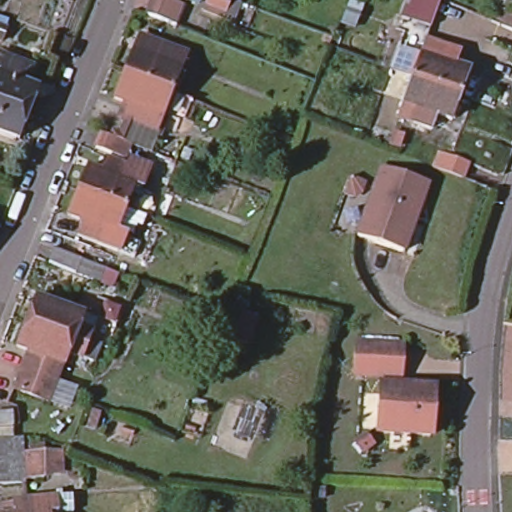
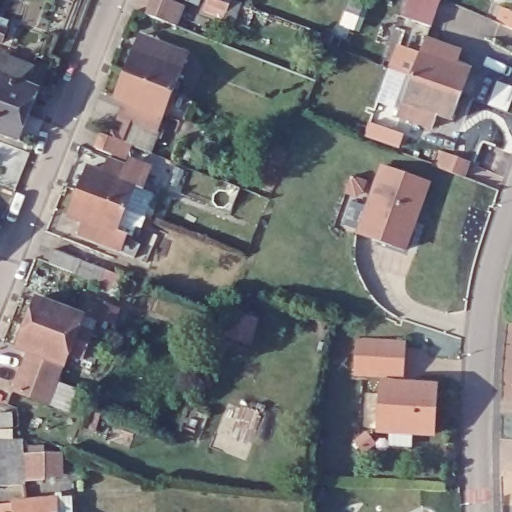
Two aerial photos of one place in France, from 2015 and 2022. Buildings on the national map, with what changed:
unchanged [(188,5),(179,26),(150,14),(156,0),(174,0),(184,4),(188,5)]
unchanged [(237,0),(232,11),(213,4),(215,0),(237,0)]
unchanged [(404,14),(409,0),(443,0),(434,25),(404,14)]
unchanged [(502,20),(508,4),(512,6),(512,24),(502,20)]
unchanged [(7,40),(0,38),(0,25),(11,28),(7,40)]
unchanged [(130,119),(135,104),(118,98),(128,73),(137,49),(142,35),(159,41),(193,53),(177,92),(195,100),(187,121),(168,114),(167,117),(162,132),(150,127),(130,119)]
unchanged [(415,79),(394,72),(401,52),(423,60),(425,56),(430,40),(444,45),(465,53),(460,67),(472,73),(463,97),(453,121),(439,116),(433,131),(414,123),(401,118),(407,104),(415,79)]
unchanged [(0,115),(0,66),(28,76),(20,95),(35,100),(25,124),(16,149),(0,143),(0,115)]
unchanged [(118,166),(91,155),(95,141),(124,152),(118,166)]
unchanged [(441,148),(470,159),(465,174),(435,163),(441,148)]
unchanged [(385,165),(430,182),(405,248),(360,231),(385,165)]
unchanged [(119,219),(70,199),(80,175),(96,180),(102,166),(120,173),(122,169),(142,176),(133,197),(128,195),(119,219)]
unchanged [(112,261),(90,253),(71,245),(76,229),(61,224),(70,199),(119,219),(110,243),(117,245),(112,261)]
unchanged [(79,272),(53,262),(60,248),(85,257),(110,267),(103,281),(79,272)]
unchanged [(15,383),(22,364),(30,345),(17,340),(36,291),(83,310),(80,321),(93,326),(82,353),(68,348),(65,359),(62,358),(55,377),(47,396),(15,383)]
unchanged [(260,317),(252,345),(222,337),(229,309),(260,317)]
unchanged [(360,336),(405,339),(403,372),(358,368),(360,336)]
unchanged [(403,380),(437,382),(435,430),(381,426),(384,378),(403,380)]
unchanged [(12,426),(0,427),(0,412),(12,411),(12,426)]
unchanged [(0,470),(0,455),(0,439),(22,438),(23,454),(60,452),(61,473),(43,475),(45,478),(25,480),(25,483),(0,486),(0,470)]
unchanged [(13,506),(57,504),(56,499),(62,498),(63,504),(69,504),(70,512),(13,512),(13,506)]

